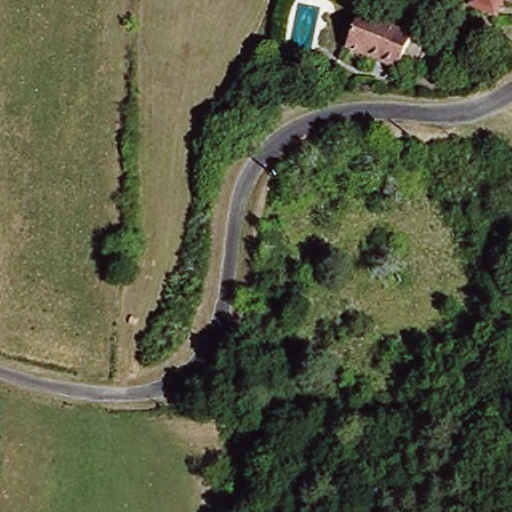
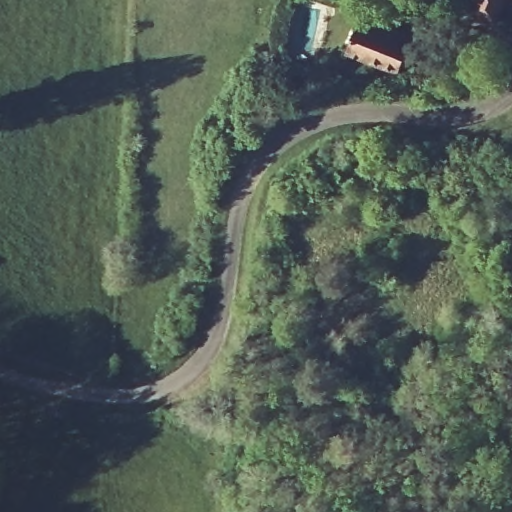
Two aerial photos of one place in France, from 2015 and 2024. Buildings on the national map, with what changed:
unchanged [(508,9),(501,28),(475,18),(482,0),(512,0),(512,11),(508,9)]
unchanged [(412,48),(397,84),(348,65),(353,52),(346,49),(362,16),(379,24),(375,33),(412,48)]

